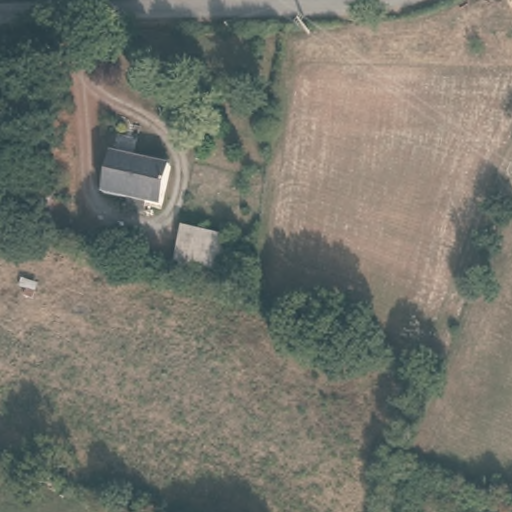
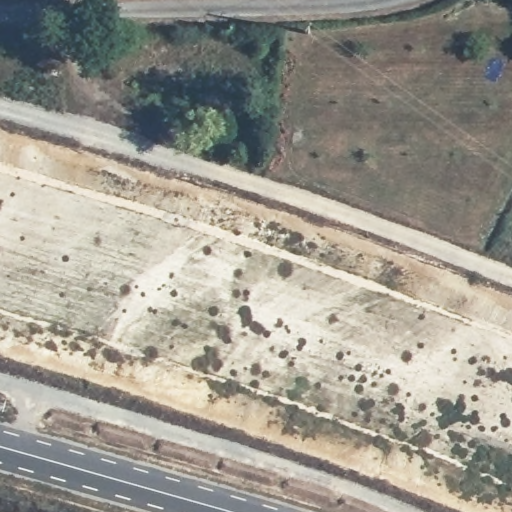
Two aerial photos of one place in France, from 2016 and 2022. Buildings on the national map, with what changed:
demolished [(100,189),(110,147),(172,162),(160,204),(100,189)]
demolished [(184,226),(231,239),(220,274),(173,261),(184,226)]

